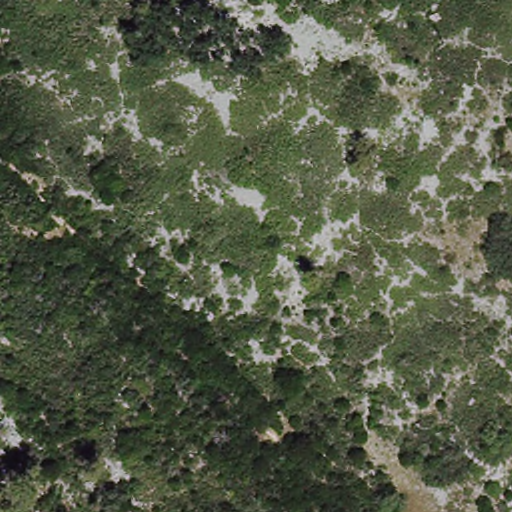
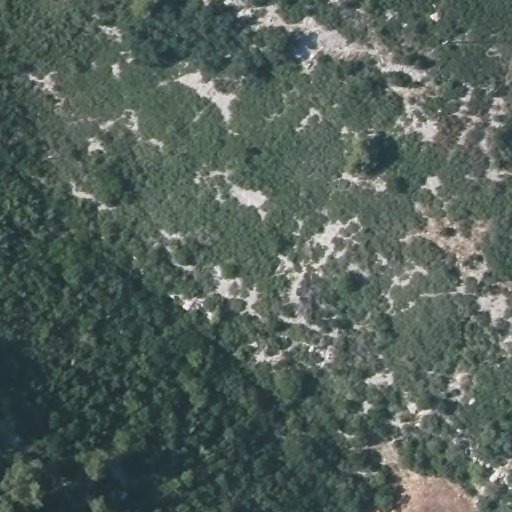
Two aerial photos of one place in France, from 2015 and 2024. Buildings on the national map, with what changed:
[]

